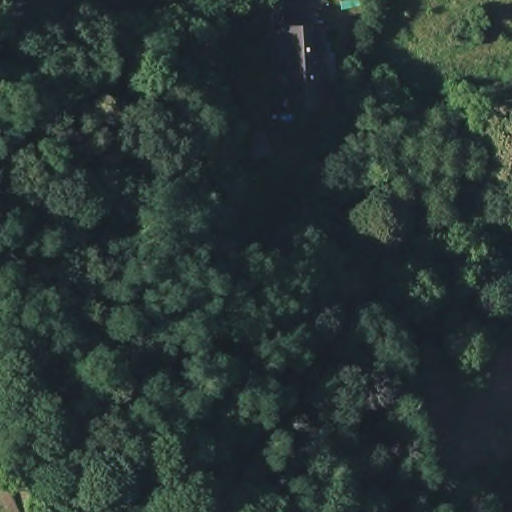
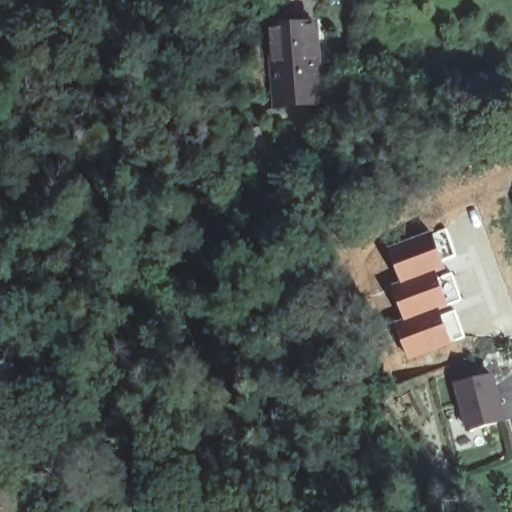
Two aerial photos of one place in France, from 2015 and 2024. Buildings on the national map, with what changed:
unchanged [(321,108),(275,112),(272,64),(270,33),(277,33),(315,30),(321,108)]
new [(433,239),(444,270),(437,273),(402,286),(390,254),(433,239)]
new [(437,273),(438,277),(452,273),(462,301),(447,307),(438,310),(403,322),(392,288),(402,286),(437,273)]
new [(438,310),(440,314),(455,311),(465,339),(451,344),(407,362),(395,326),(403,322),(438,310)]
new [(488,378),(489,381),(500,424),(465,433),(453,387),(472,382),(488,378)]

